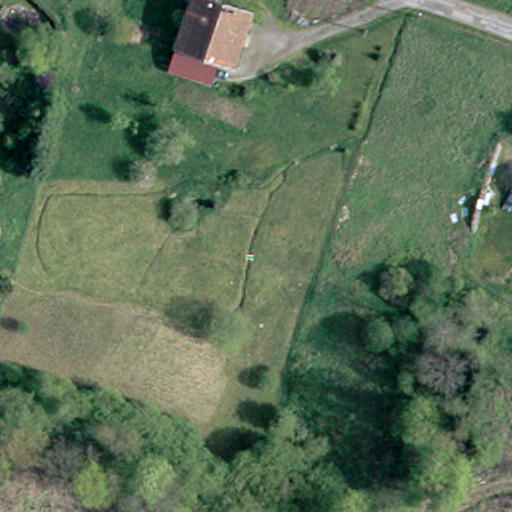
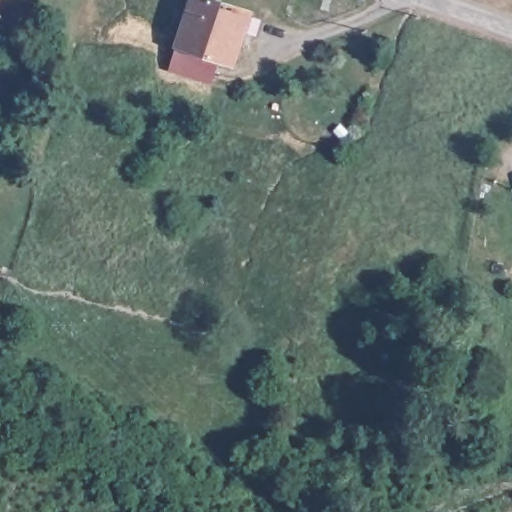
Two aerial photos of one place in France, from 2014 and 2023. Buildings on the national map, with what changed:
unchanged [(189,0),(214,0),(251,12),(233,63),(174,41),(189,0)]

